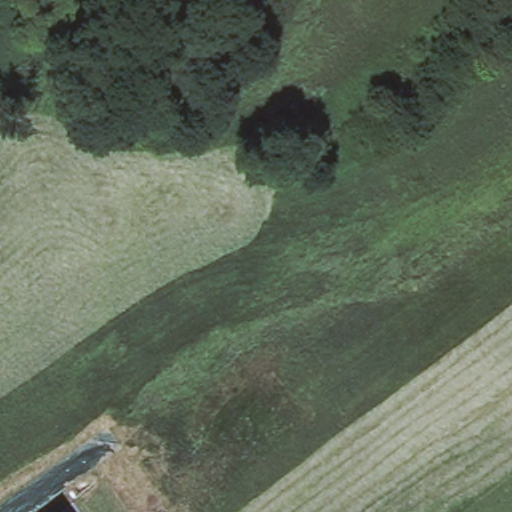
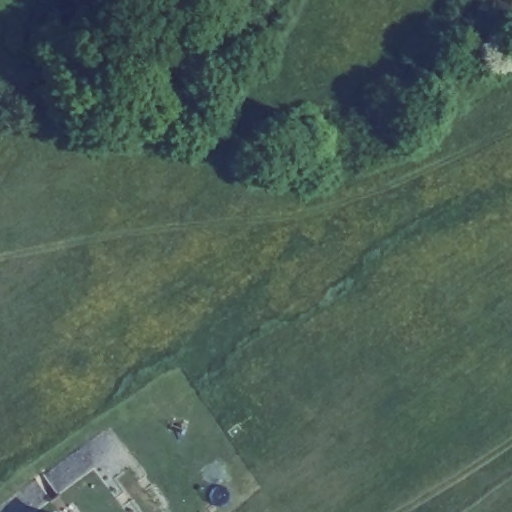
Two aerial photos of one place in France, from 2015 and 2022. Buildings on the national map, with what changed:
unchanged [(56,509),(59,512),(53,512),(56,509)]

